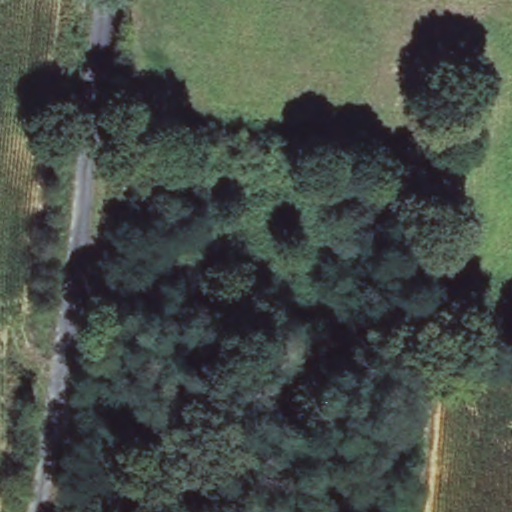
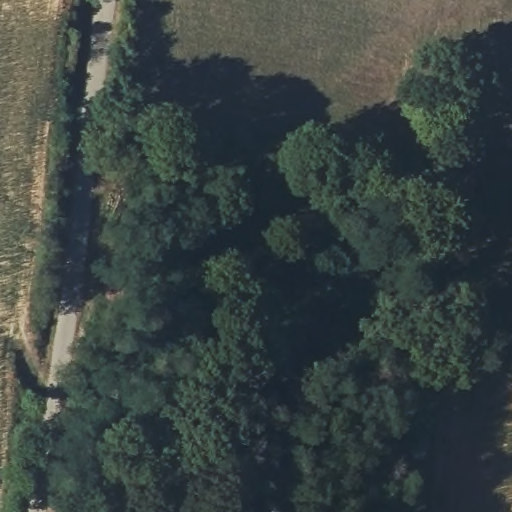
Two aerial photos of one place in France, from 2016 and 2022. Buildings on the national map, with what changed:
unchanged [(136,75),(131,98),(116,96),(120,71),(136,75)]

